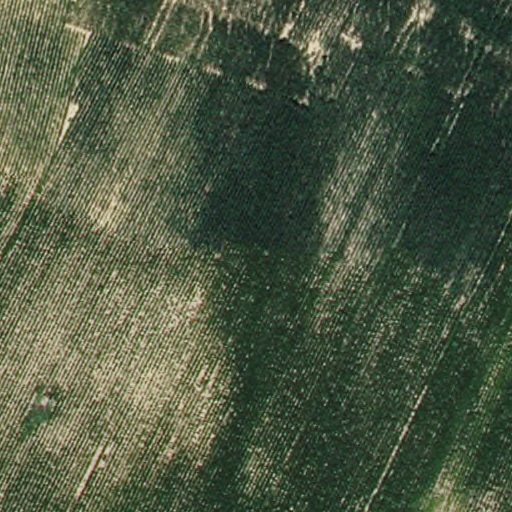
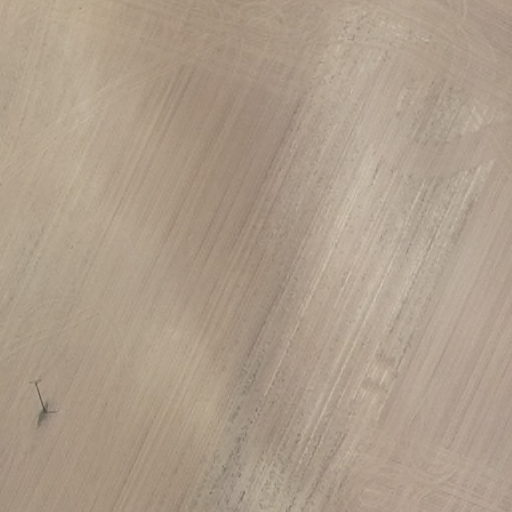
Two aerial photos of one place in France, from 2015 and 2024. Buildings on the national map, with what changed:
[]

